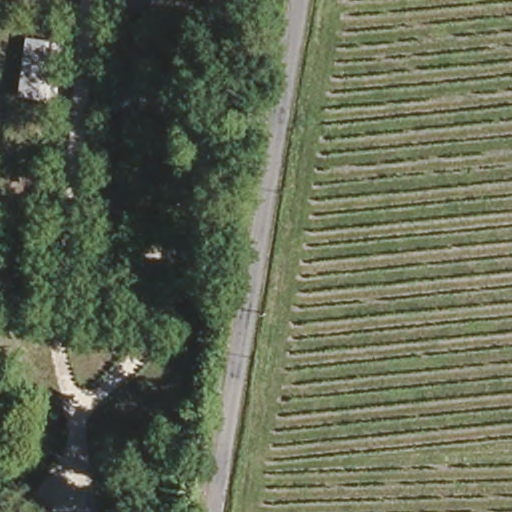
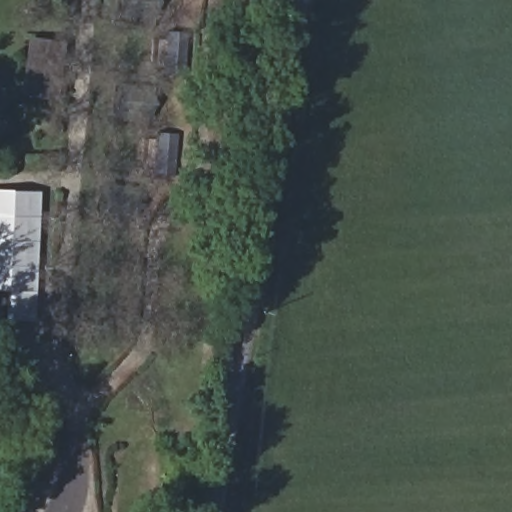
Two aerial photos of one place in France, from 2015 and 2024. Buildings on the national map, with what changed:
new [(38,192),(34,293),(0,292),(0,191),(38,192)]

